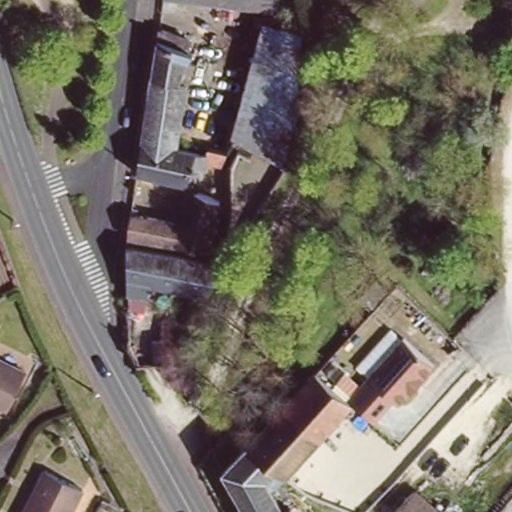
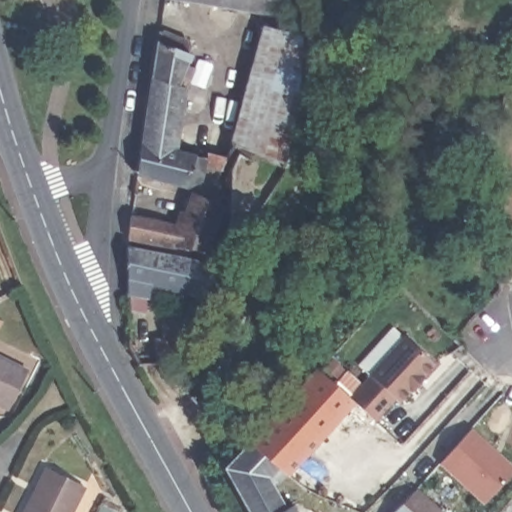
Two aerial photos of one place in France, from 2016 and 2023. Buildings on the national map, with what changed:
unchanged [(167,7),(168,0),(279,0),(278,12),(167,7)]
unchanged [(148,33),(176,45),(172,54),(175,56),(163,85),(170,89),(158,153),(131,149),(148,33)]
unchanged [(266,33),(301,35),(299,117),(273,165),(225,143),(266,33)]
unchanged [(169,155),(193,159),(190,186),(157,182),(156,189),(145,187),(146,179),(127,176),(131,149),(158,153),(169,155)]
unchanged [(172,228),(184,191),(216,198),(197,256),(117,242),(120,223),(121,218),(172,228)]
unchanged [(140,287),(139,300),(117,297),(117,249),(167,258),(216,270),(195,298),(140,287)]
unchanged [(165,340),(161,323),(190,317),(180,360),(160,365),(159,362),(155,342),(165,340)]
unchanged [(401,337),(434,369),(395,408),(390,402),(371,422),(350,404),(355,400),(348,394),(401,337)]
unchanged [(5,412),(0,410),(0,361),(24,373),(5,412)]
unchanged [(348,394),(355,400),(350,404),(287,473),(278,464),(262,479),(280,509),(287,505),(291,512),(249,512),(223,465),(316,365),(348,394)]
new [(471,429),(512,466),(512,471),(483,503),(439,465),(471,429)]
unchanged [(77,485),(65,512),(17,512),(40,466),(77,485)]
unchanged [(405,494),(424,512),(388,512),(405,494)]

